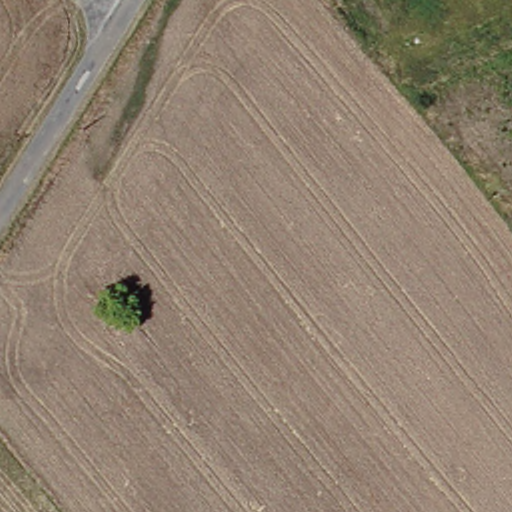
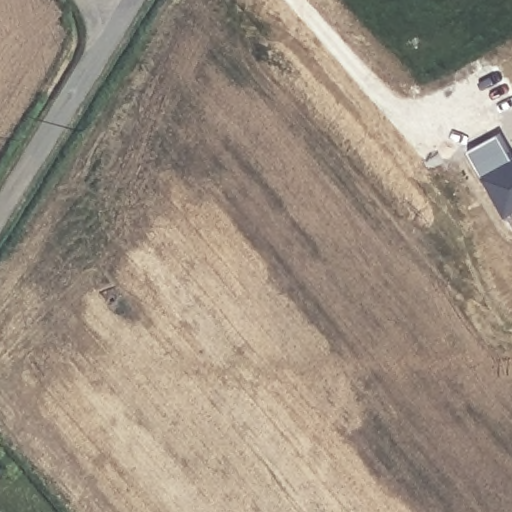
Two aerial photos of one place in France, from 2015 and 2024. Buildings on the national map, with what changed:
new [(465,152),(495,135),(510,161),(512,159),(512,212),(502,217),(465,152)]

